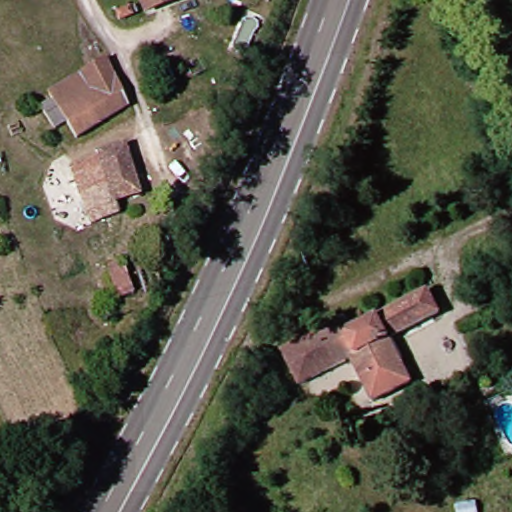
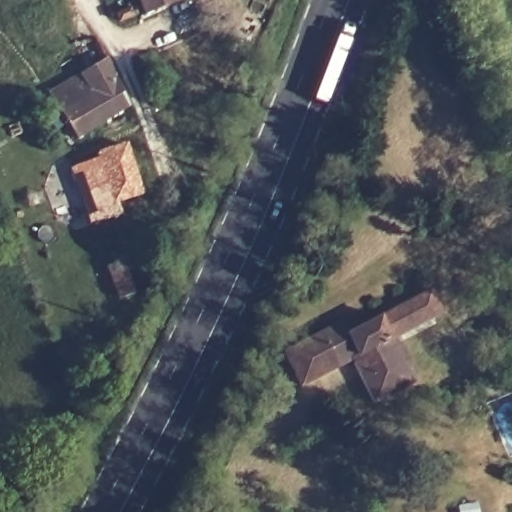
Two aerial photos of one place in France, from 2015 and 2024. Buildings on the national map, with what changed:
unchanged [(195,1),(124,27),(121,19),(148,9),(144,0),(195,0),(195,1)]
unchanged [(46,114),(58,105),(54,97),(110,64),(135,113),(83,143),(71,127),(62,133),(46,114)]
unchanged [(133,148),(146,198),(121,203),(125,218),(94,225),(88,197),(81,166),(104,161),(104,155),(133,148)]
unchanged [(123,313),(105,266),(120,260),(136,307),(123,313)]
unchanged [(431,281),(443,311),(397,331),(416,375),(373,394),(356,356),(342,363),(331,346),(314,353),(308,338),(431,281)]
unchanged [(308,338),(314,353),(331,346),(342,363),(301,383),(284,349),(308,338)]

